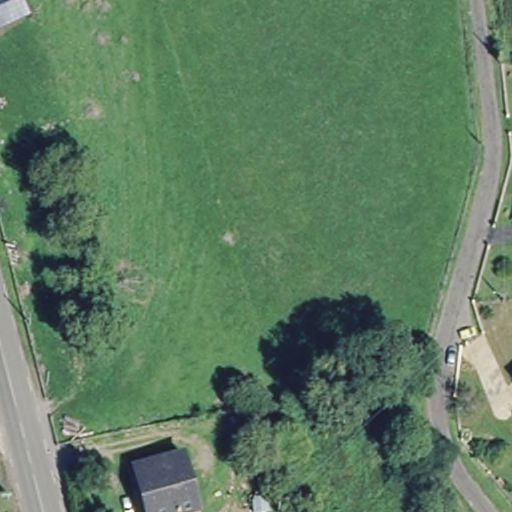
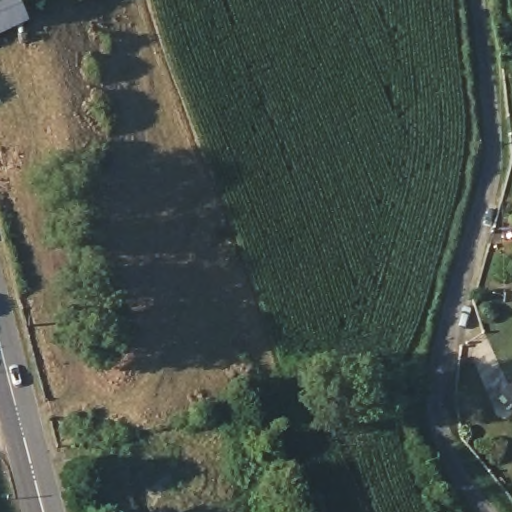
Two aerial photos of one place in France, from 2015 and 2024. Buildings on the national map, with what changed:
unchanged [(0,30),(0,0),(21,0),(29,17),(0,30)]
demolished [(194,512),(142,512),(131,471),(179,456),(194,512)]

